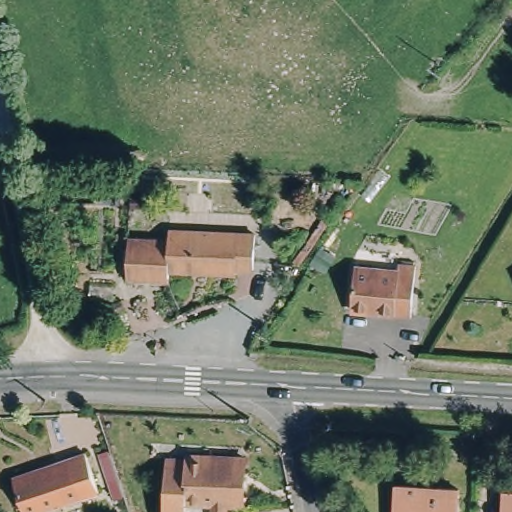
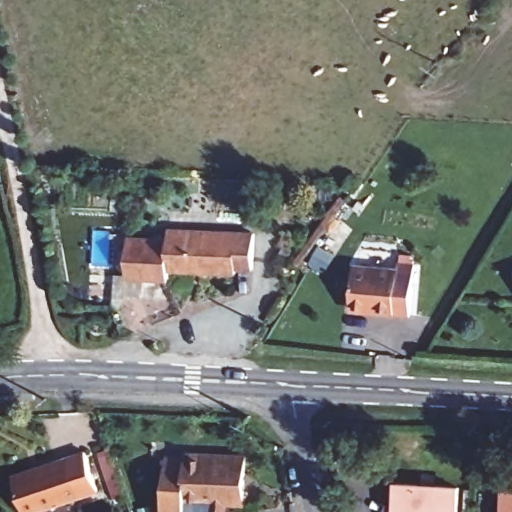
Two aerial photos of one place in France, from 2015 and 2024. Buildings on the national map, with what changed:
unchanged [(238,271),(238,276),(165,271),(165,279),(125,277),(126,238),(167,240),(167,231),(258,237),(255,272),(238,271)]
unchanged [(355,303),(362,261),(405,269),(397,311),(355,303)]
unchanged [(18,512),(5,478),(77,453),(90,491),(30,512),(18,512)]
unchanged [(185,505),(185,501),(167,500),(167,463),(187,464),(187,459),(242,462),(240,507),(185,505)]
unchanged [(398,484),(457,489),(454,512),(392,512),(394,484),(398,484)]
unchanged [(512,490),(512,512),(501,512),(502,489),(512,490)]

